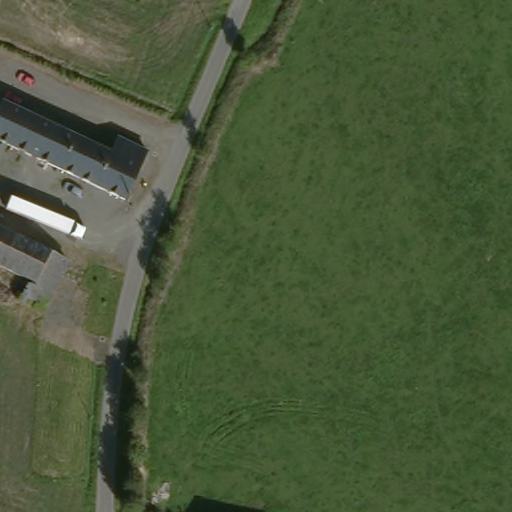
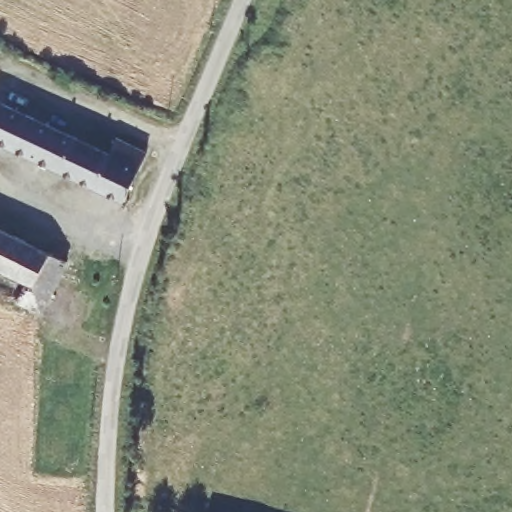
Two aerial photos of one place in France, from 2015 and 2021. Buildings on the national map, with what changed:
unchanged [(1,102),(42,122),(110,154),(117,139),(147,152),(125,200),(0,142),(0,104),(1,102)]
unchanged [(0,291),(0,229),(67,262),(42,312),(0,291)]

